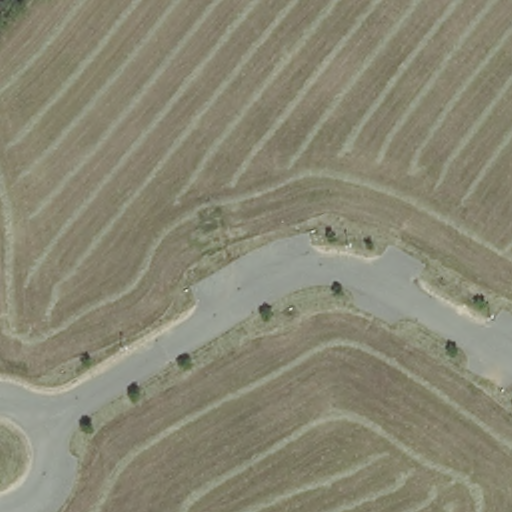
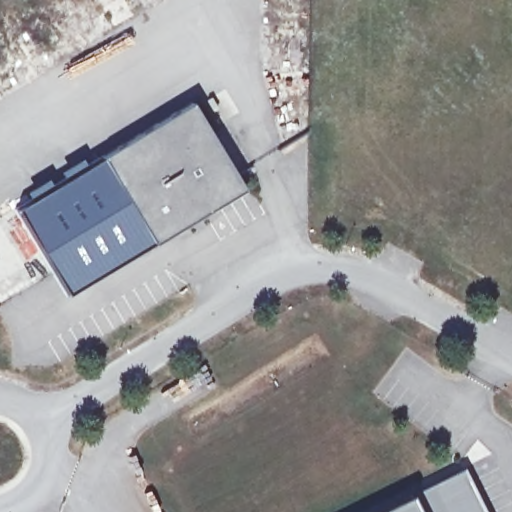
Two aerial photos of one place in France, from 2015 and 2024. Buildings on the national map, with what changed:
new [(67,298),(15,211),(192,104),(245,192),(206,215),(187,227),(67,298)]
new [(407,497),(462,470),(483,512),(377,512),(407,497)]

